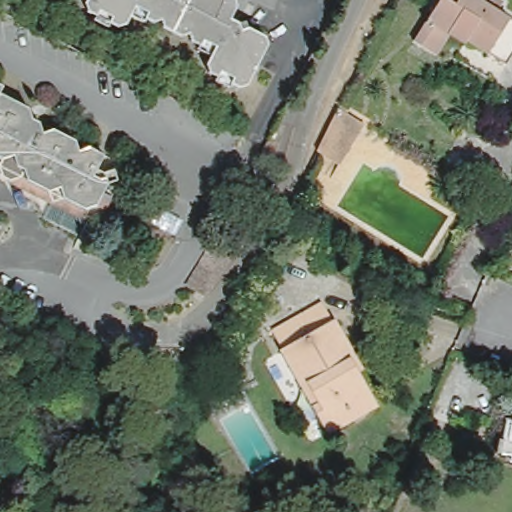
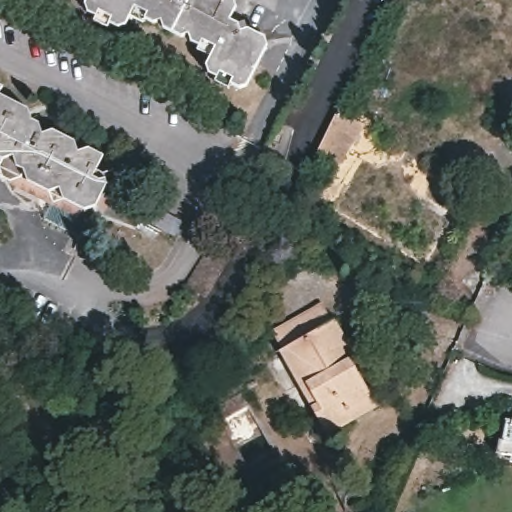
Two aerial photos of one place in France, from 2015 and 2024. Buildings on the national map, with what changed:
unchanged [(217,77),(208,73),(206,66),(210,56),(197,50),(199,46),(190,41),(188,34),(182,37),(163,27),(161,20),(154,23),(145,19),(143,23),(130,16),(125,25),(118,27),(109,23),(107,27),(94,20),(96,16),(87,12),(85,5),(87,0),(234,0),(236,6),(230,20),(238,24),(240,31),(247,28),(265,37),(267,45),(247,86),(239,88),(230,84),(228,88),(215,81),(217,77)]
demolished [(504,0),(511,4),(508,11),(512,14),(512,54),(506,65),(463,40),(461,43),(454,39),(445,34),(433,51),(416,41),(441,0),(445,0),(455,6),(459,0),(479,0),(487,5),(490,0),(504,0)]
unchanged [(3,82),(0,88),(0,80),(3,82)]
unchanged [(105,183),(101,190),(94,204),(79,208),(18,176),(0,167),(0,91),(26,104),(30,115),(38,119),(41,129),(51,126),(73,137),(78,148),(87,145),(101,152),(94,168),(101,171),(105,183)]
unchanged [(355,106),(351,114),(367,124),(341,165),(322,153),(347,101),(355,106)]
unchanged [(230,258),(207,297),(186,285),(207,246),(230,258)]
unchanged [(362,353),(358,355),(378,391),(354,405),(360,417),(337,430),(288,345),(291,343),(282,328),(328,303),(337,318),(339,317),(362,353)]
unchanged [(508,439),(511,439),(512,435),(512,453),(505,451),(508,439)]

